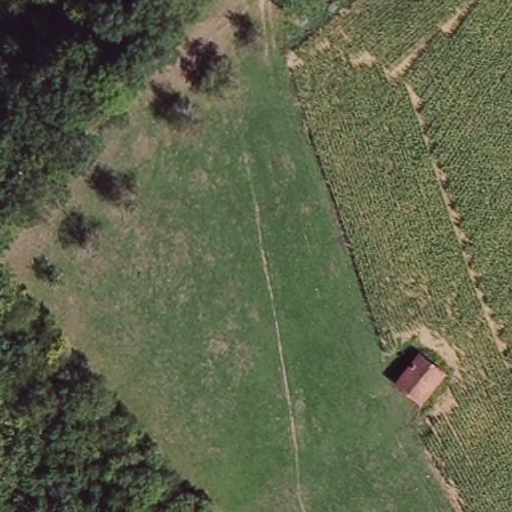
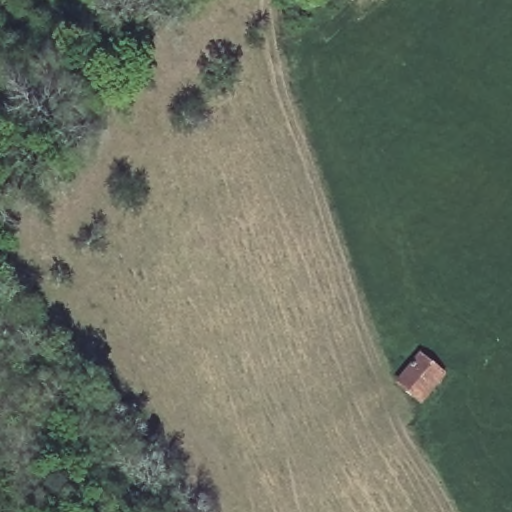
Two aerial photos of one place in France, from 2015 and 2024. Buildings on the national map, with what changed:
unchanged [(421,408),(399,390),(424,359),(446,378),(421,408)]

